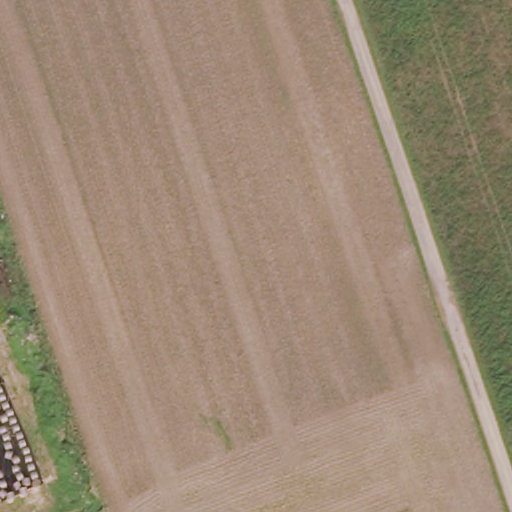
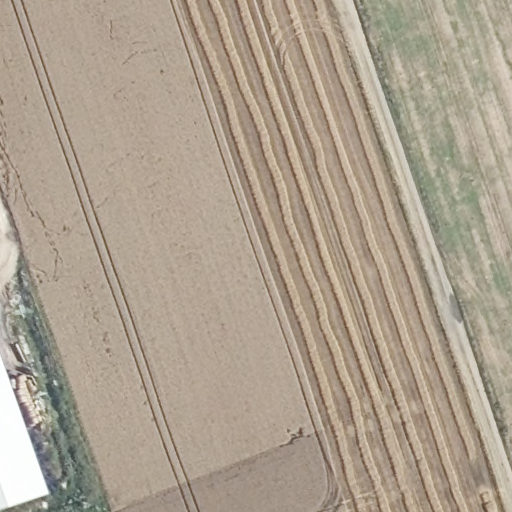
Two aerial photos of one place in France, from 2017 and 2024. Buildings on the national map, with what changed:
new [(0,512),(0,381),(42,498),(0,512)]

